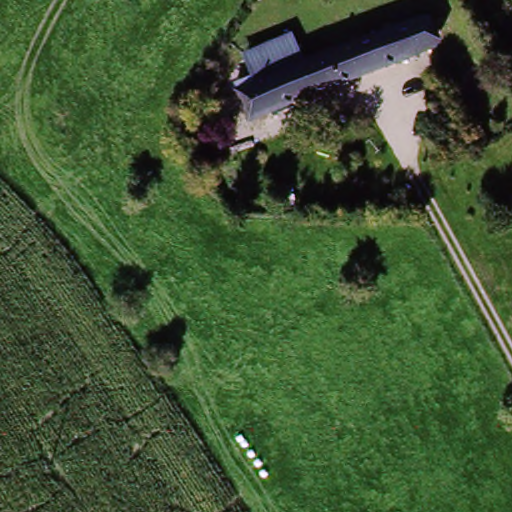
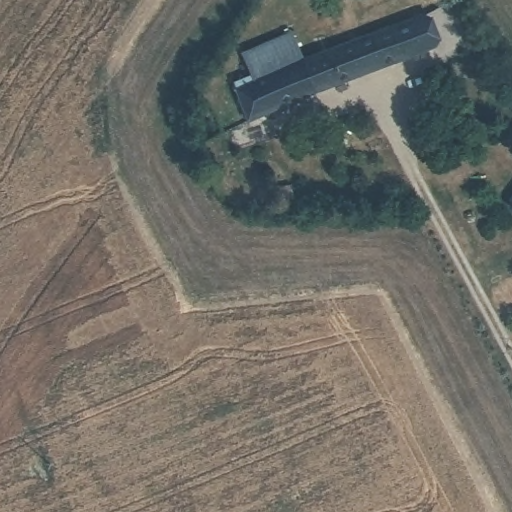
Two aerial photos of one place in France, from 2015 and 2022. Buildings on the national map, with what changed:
unchanged [(257,77),(248,56),(293,38),(305,66),(422,19),(436,51),(250,123),(238,91),(235,86),(257,77)]

